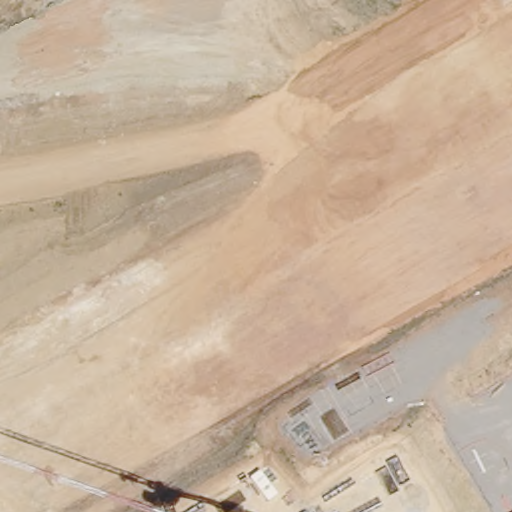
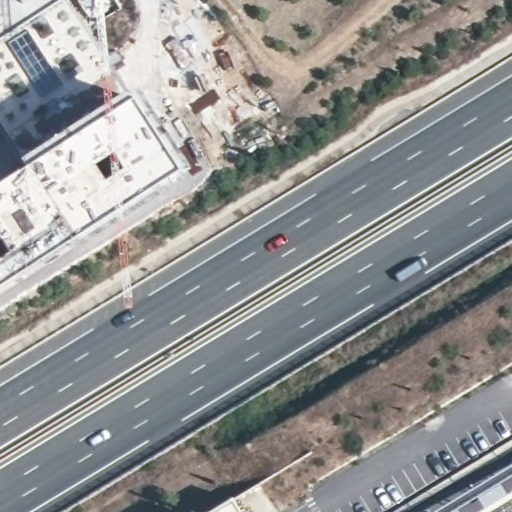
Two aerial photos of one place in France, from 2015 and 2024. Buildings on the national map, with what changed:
new [(66,0),(7,41),(0,45),(0,0),(66,0)]
new [(133,90),(185,168),(0,286),(0,182),(23,166),(20,160),(22,158),(0,125),(0,45),(7,41),(66,0),(68,0),(129,94),(133,90)]
unchanged [(246,512),(218,512),(238,499),(246,512)]

